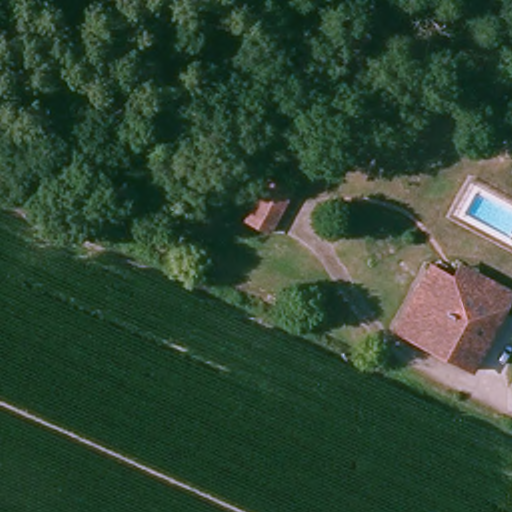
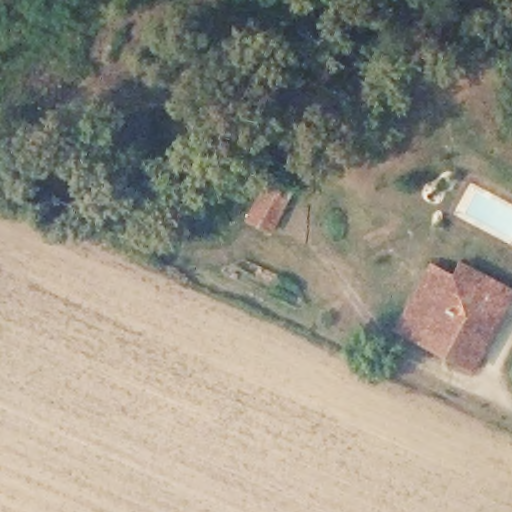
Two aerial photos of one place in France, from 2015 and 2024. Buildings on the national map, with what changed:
unchanged [(270,237),(248,225),(271,185),(293,197),(270,237)]
unchanged [(480,359),(472,372),(427,346),(407,333),(445,270),(459,278),(466,267),(512,294),(512,306),(510,308),(510,309),(485,350),(480,359)]

